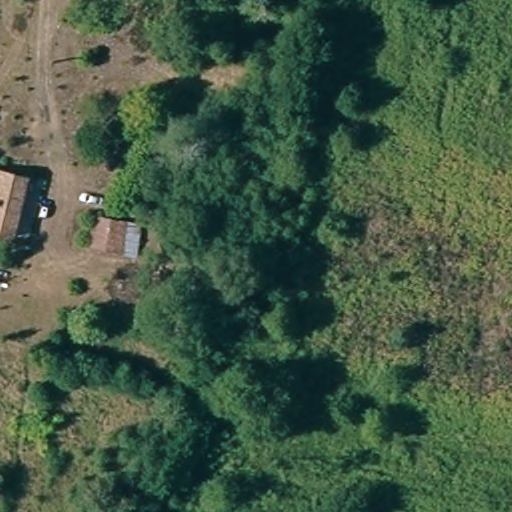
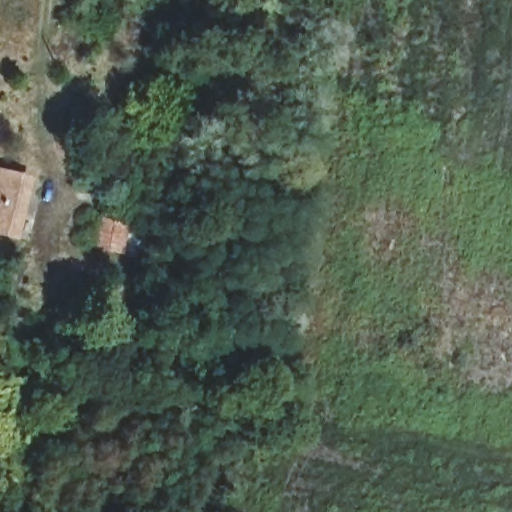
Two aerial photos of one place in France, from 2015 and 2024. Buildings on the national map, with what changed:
unchanged [(4,241),(0,240),(0,173),(19,177),(4,241)]
unchanged [(130,229),(122,252),(98,245),(104,221),(130,229)]

